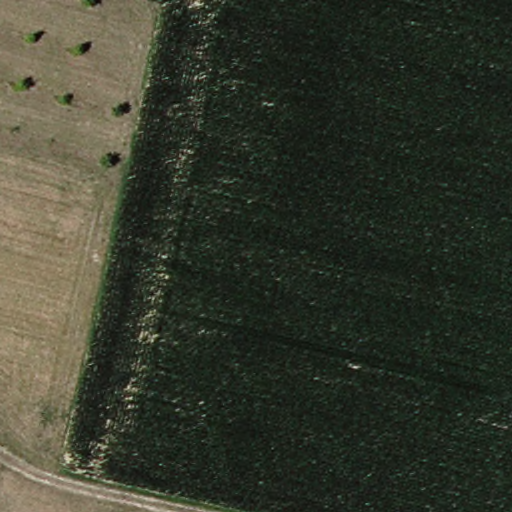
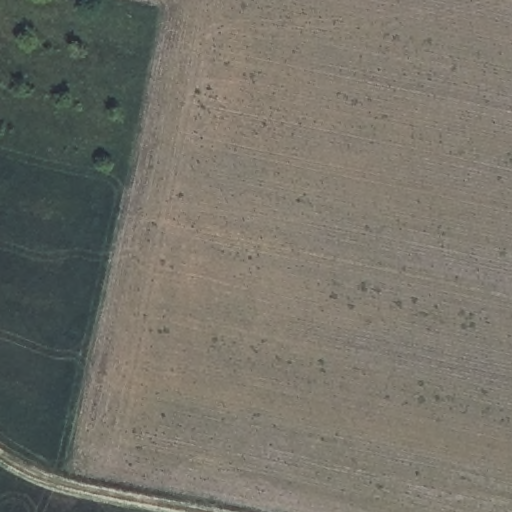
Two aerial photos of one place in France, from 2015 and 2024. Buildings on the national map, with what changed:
[]

